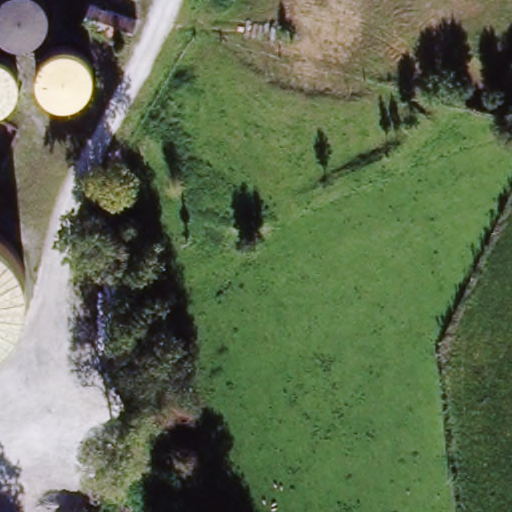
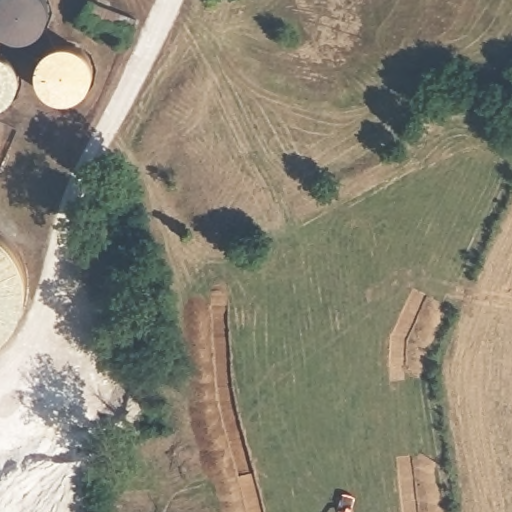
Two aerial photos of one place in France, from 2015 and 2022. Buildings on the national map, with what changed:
unchanged [(100,5),(140,19),(130,40),(93,26),(100,5)]

